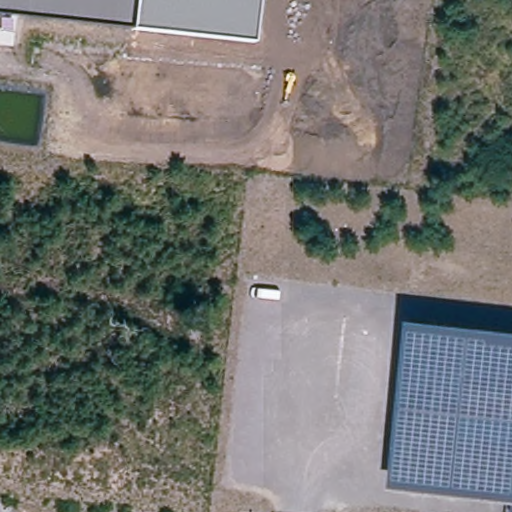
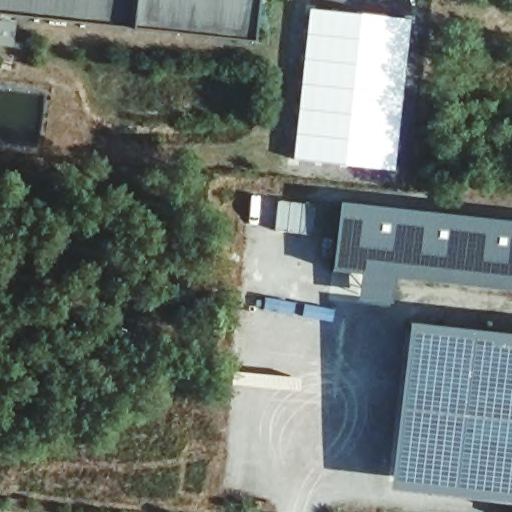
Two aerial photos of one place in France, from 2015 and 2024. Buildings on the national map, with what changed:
unchanged [(131,29),(0,14),(0,0),(259,0),(254,42),(131,29)]
new [(308,8),(411,19),(394,172),(292,159),(308,8)]
new [(276,199),(305,203),(304,233),(273,230),(276,199)]
new [(512,290),(396,277),(392,303),(359,299),(362,273),(333,270),(340,201),(512,221),(512,290)]
unchanged [(425,479),(398,476),(415,324),(443,327),(425,479)]
unchanged [(443,327),(512,335),(512,489),(425,479),(443,327)]

